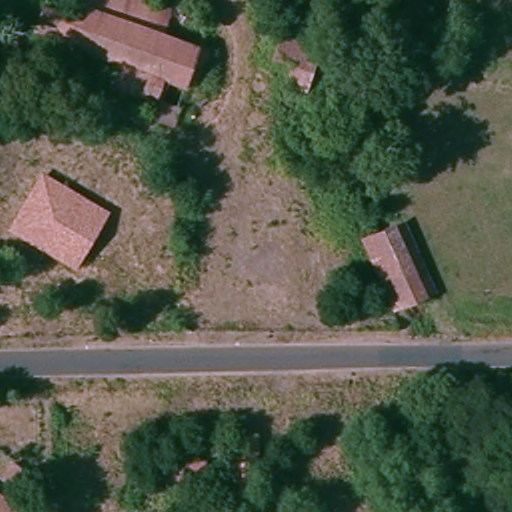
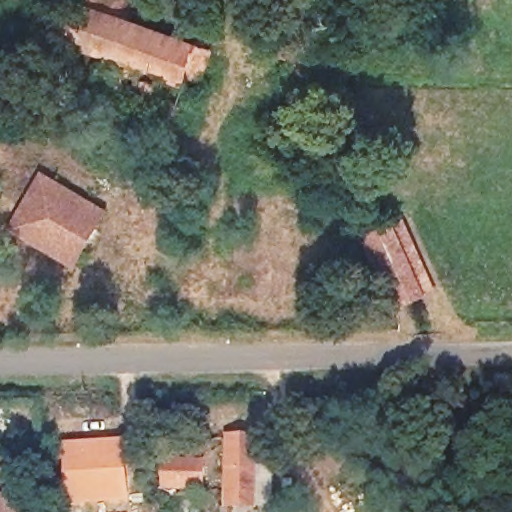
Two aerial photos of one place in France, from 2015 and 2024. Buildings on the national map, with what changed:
unchanged [(73,8),(76,0),(130,0),(159,10),(201,24),(193,49),(84,11),(73,8)]
unchanged [(73,8),(84,11),(71,49),(29,35),(37,12),(68,22),(73,8)]
unchanged [(193,49),(208,53),(198,82),(184,77),(180,86),(158,79),(151,100),(109,85),(116,65),(71,49),(84,11),(193,49)]
unchanged [(304,75),(287,71),(290,58),(272,53),(278,30),(313,39),(304,75)]
unchanged [(103,75),(104,76),(104,77),(104,78),(103,79),(102,80),(102,81),(101,81),(100,81),(99,81),(98,81),(97,80),(96,80),(96,79),(95,78),(95,77),(95,76),(95,75),(96,74),(97,73),(98,72),(99,72),(100,72),(101,72),(101,73),(102,73),(102,74),(103,74),(103,75)]
unchanged [(166,128),(144,120),(151,100),(158,79),(180,86),(166,128)]
unchanged [(44,175),(104,213),(71,264),(12,227),(44,175)]
unchanged [(400,223),(433,289),(413,299),(408,302),(397,307),(364,241),(376,235),(378,234),(380,233),(400,223)]
new [(128,439),(129,500),(64,504),(61,441),(128,439)]
new [(256,441),(258,441),(256,512),(228,512),(231,440),(256,441)]
unchanged [(202,462),(202,487),(164,485),(165,461),(202,462)]
unchanged [(30,512),(0,512),(0,491),(30,512)]

